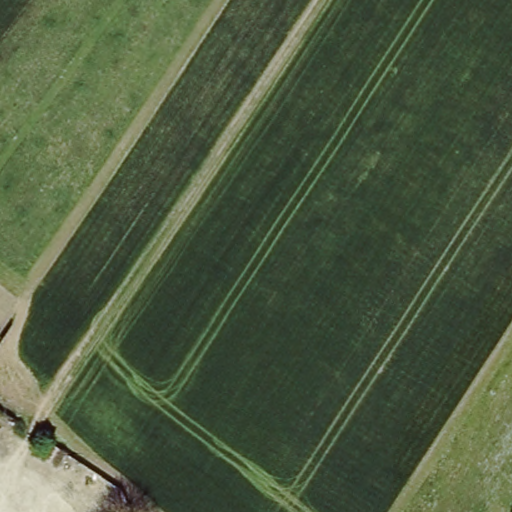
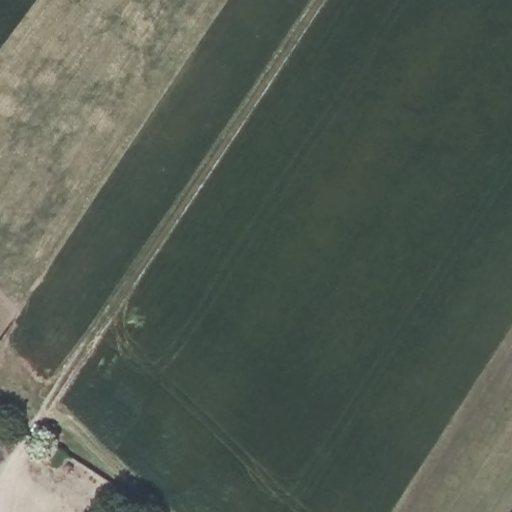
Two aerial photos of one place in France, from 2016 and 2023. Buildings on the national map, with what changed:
[]

